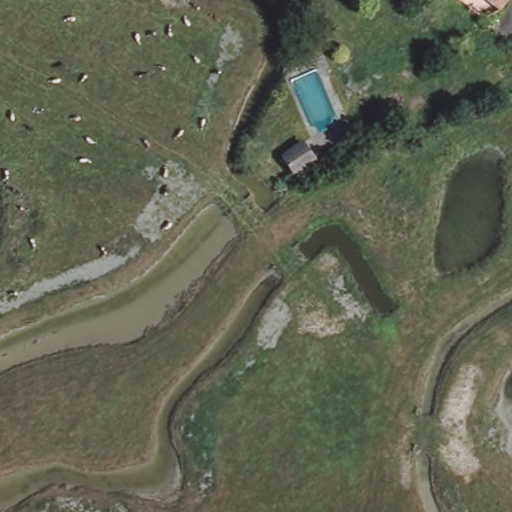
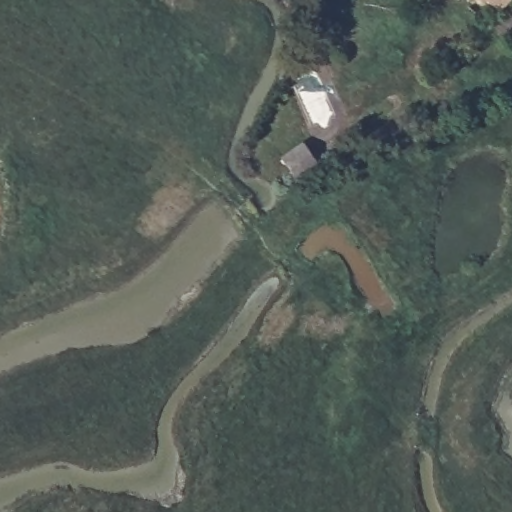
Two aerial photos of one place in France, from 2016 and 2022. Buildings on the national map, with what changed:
unchanged [(495,0),(508,0),(503,7),(495,0)]

